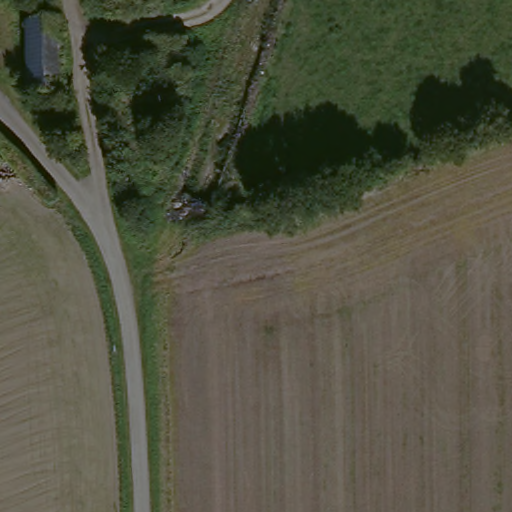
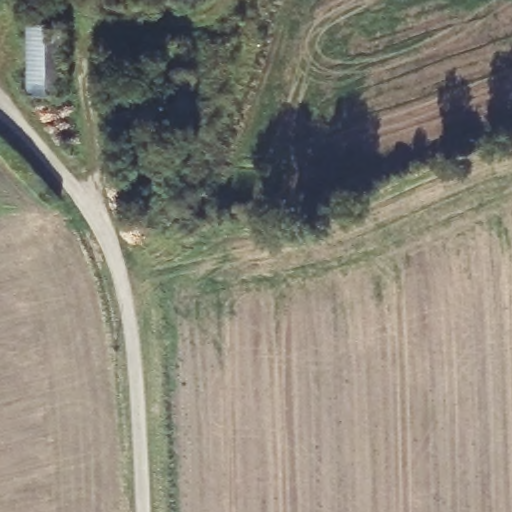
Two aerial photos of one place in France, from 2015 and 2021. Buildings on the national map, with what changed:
unchanged [(34,98),(28,29),(61,26),(66,98),(34,98)]

